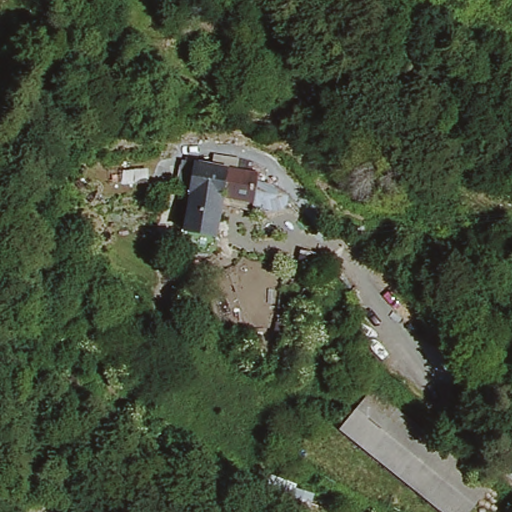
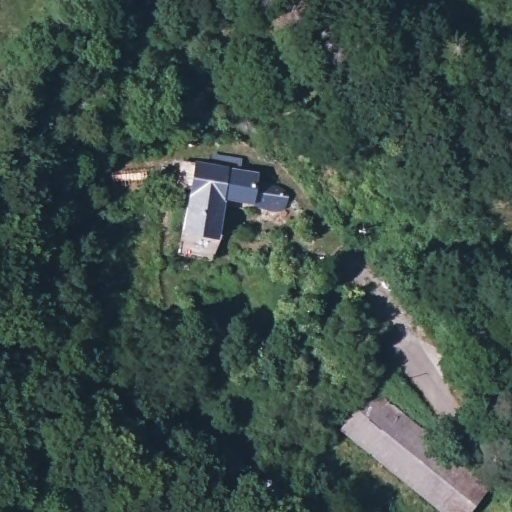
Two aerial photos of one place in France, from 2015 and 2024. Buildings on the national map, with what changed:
unchanged [(194,190),(203,162),(227,170),(255,179),(252,187),(280,196),(273,212),(247,205),(244,214),(214,203),(203,235),(182,227),(194,190)]
unchanged [(486,485),(466,512),(441,512),(335,431),(367,389),(486,485)]

